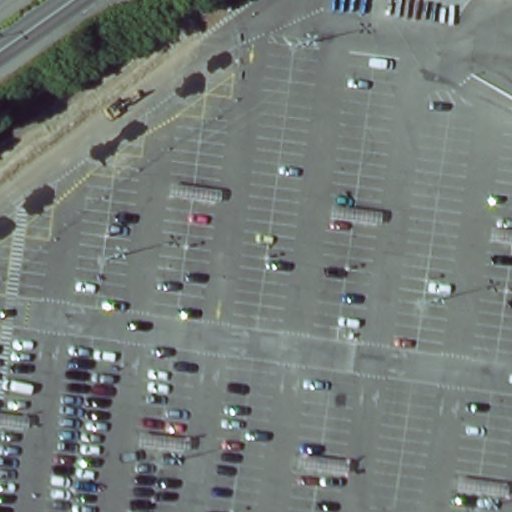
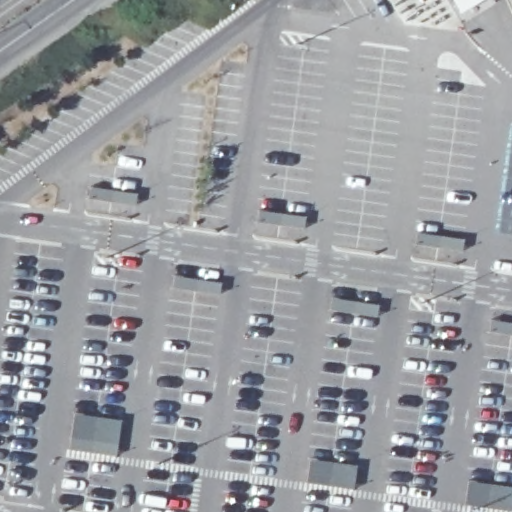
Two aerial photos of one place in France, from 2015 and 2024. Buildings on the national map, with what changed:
new [(457,14),(449,0),(480,0),(457,14)]
new [(115,455),(69,449),(73,413),(120,419),(115,455)]

